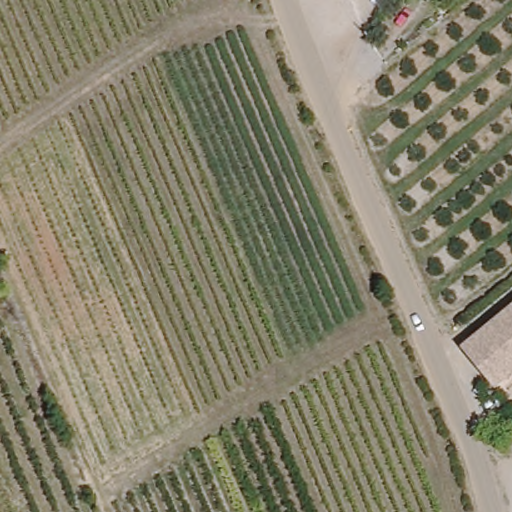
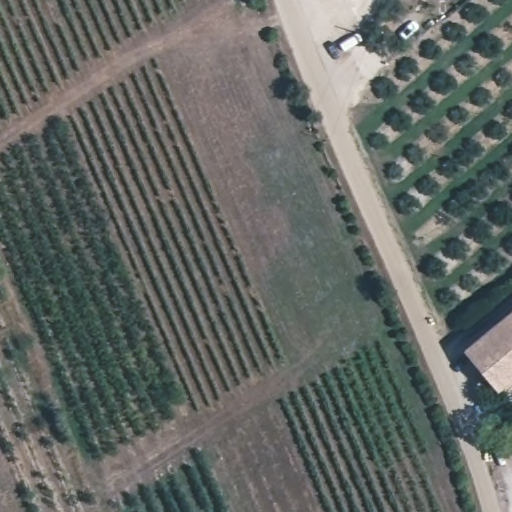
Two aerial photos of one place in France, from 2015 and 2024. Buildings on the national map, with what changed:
unchanged [(469,349),(512,314),(512,383),(503,391),(469,349)]

